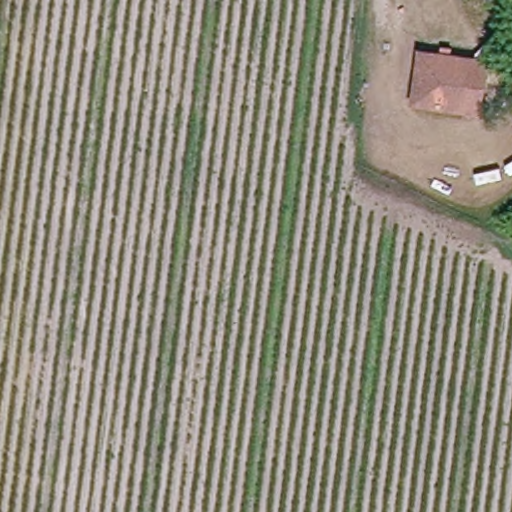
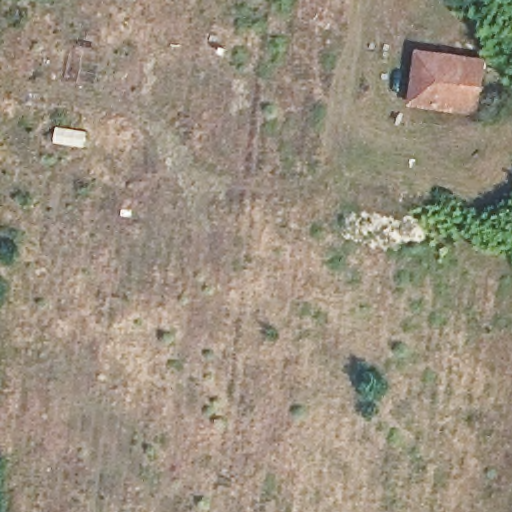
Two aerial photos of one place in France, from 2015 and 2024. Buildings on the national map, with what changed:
unchanged [(413,104),(420,55),(489,65),(481,116),(413,104)]

